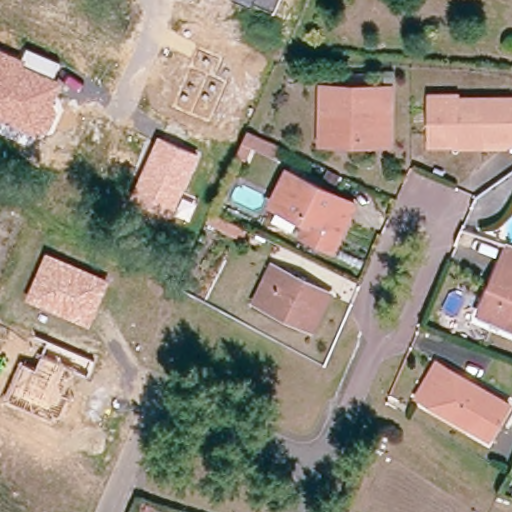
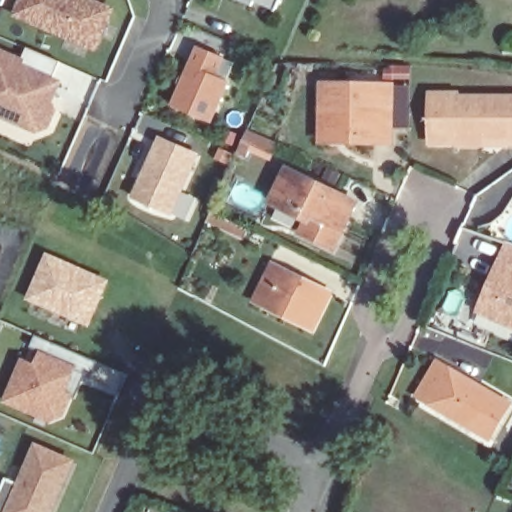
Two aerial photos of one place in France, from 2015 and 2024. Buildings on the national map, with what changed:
new [(94,51),(14,16),(21,0),(92,0),(112,9),(94,51)]
unchanged [(273,10),(252,0),(250,5),(238,0),(278,0),(273,10)]
unchanged [(0,48),(21,57),(26,47),(60,60),(54,76),(63,80),(53,101),(58,109),(49,130),(39,134),(0,117),(0,48)]
new [(212,122),(172,106),(196,47),(224,59),(218,79),(228,83),(212,122)]
unchanged [(339,140),(320,140),(319,86),(339,85),(340,90),(369,90),(369,84),(386,82),(388,124),(388,139),(339,140)]
unchanged [(512,99),(512,134),(512,139),(460,140),(460,145),(434,144),(433,99),(512,99)]
unchanged [(250,128),(281,142),(275,151),(256,140),(249,155),(240,150),(250,128)]
unchanged [(199,152),(173,212),(134,192),(158,135),(199,152)]
unchanged [(300,232),(304,221),(270,206),(286,174),(335,197),(352,205),(347,216),(332,247),(300,232)]
unchanged [(474,312),(489,277),(495,262),(503,242),(512,245),(512,327),(474,312)]
unchanged [(45,252),(109,280),(89,325),(25,298),(45,252)]
unchanged [(268,282),(274,267),(331,294),(314,332),(298,324),(257,305),(268,282)]
unchanged [(93,361),(87,376),(69,370),(60,392),(69,396),(61,415),(49,420),(5,401),(23,363),(35,370),(47,342),(93,361)]
unchanged [(440,359),(509,398),(490,431),(421,392),(440,359)]
new [(0,512),(0,493),(5,480),(17,485),(33,444),(74,460),(51,512),(0,512)]

